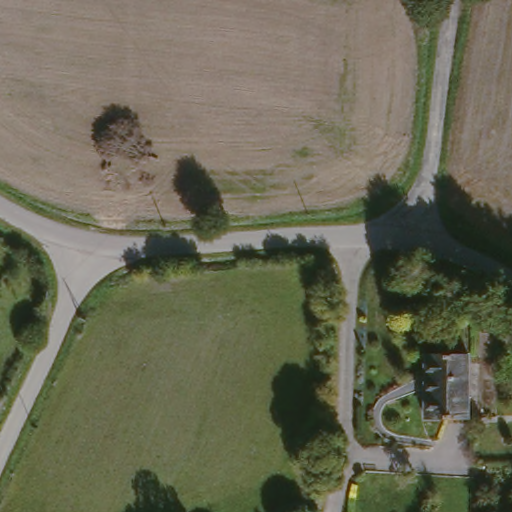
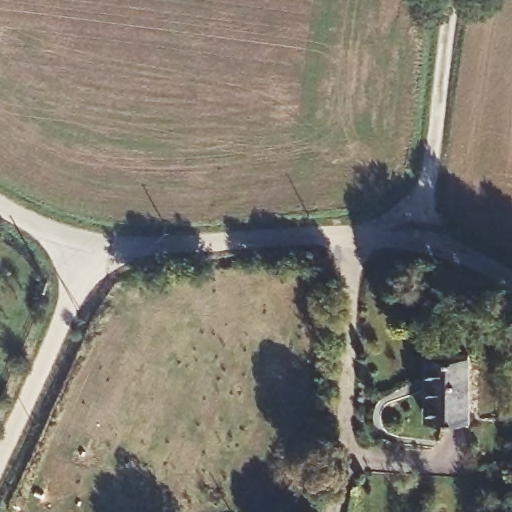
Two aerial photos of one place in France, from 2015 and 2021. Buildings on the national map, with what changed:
unchanged [(472,414),(426,415),(427,352),(472,351),(472,414)]

